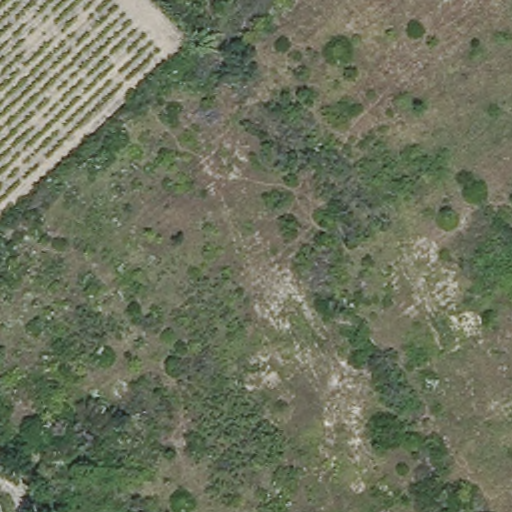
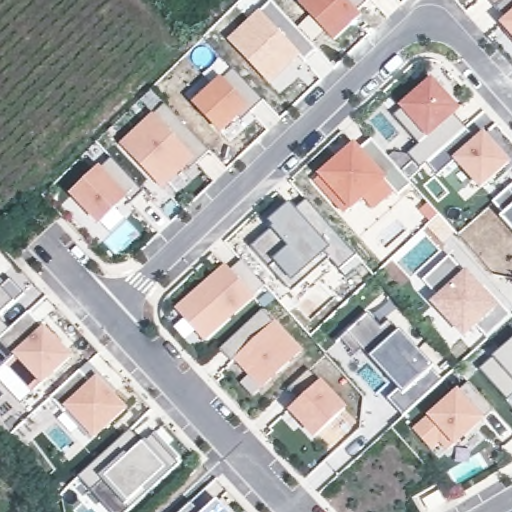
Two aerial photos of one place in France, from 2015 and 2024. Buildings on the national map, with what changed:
new [(270,82),(230,40),(272,0),(318,49),(303,63),(297,57),(287,66),(270,82)]
new [(370,0),(357,13),(360,15),(335,40),(302,5),(308,0),(370,0)]
new [(490,0),(504,0),(496,8),(490,0)]
new [(502,22),(507,18),(496,8),(505,0),(512,0),(512,34),(502,22)]
new [(238,116),(222,132),(195,104),(234,68),(265,100),(251,112),(242,120),(238,116)]
new [(404,109),(400,108),(433,78),(460,111),(454,116),(465,129),(425,164),(428,168),(423,171),(409,155),(422,144),(397,115),(404,109)]
new [(183,162),(160,184),(120,141),(163,101),(207,148),(195,160),(188,167),(183,162)]
new [(465,129),(476,140),(482,135),(507,163),(480,187),(455,159),(435,176),(425,164),(465,129)]
new [(356,145),(360,150),(372,139),(407,179),(412,184),(398,195),(394,190),(373,209),(364,198),(347,213),(317,180),(356,145)]
new [(110,156),(142,190),(130,202),(125,197),(98,222),(71,193),(110,156)]
new [(512,186),(512,230),(500,218),(504,214),(493,202),(512,186)]
new [(268,226),(290,204),(298,211),(307,202),(364,265),(347,279),(330,259),(292,292),(252,247),(268,226)]
new [(482,290),(485,287),(500,302),(512,315),(487,338),(475,324),(464,334),(435,303),(440,298),(423,280),(450,256),(482,290)]
new [(226,266),(230,271),(242,260),(265,285),(205,339),(178,309),(226,266)]
new [(13,279),(27,294),(0,317),(0,283),(3,287),(13,279)]
new [(263,309),(301,351),(262,386),(236,358),(232,361),(221,348),(263,309)]
new [(35,392),(19,375),(28,367),(17,356),(6,367),(0,373),(0,318),(10,330),(29,312),(72,357),(35,392)]
new [(368,313),(382,327),(390,320),(402,334),(405,333),(435,366),(433,367),(443,379),(405,414),(390,397),(405,382),(398,374),(396,376),(379,357),(377,359),(364,344),(356,352),(342,337),(368,313)]
new [(512,340),(512,397),(508,401),(480,369),(512,340)]
new [(64,413),(50,398),(80,371),(89,362),(115,390),(110,394),(125,409),(95,437),(90,441),(64,413)]
new [(310,369),(346,408),(316,436),(292,409),(302,402),(288,388),(310,369)]
new [(470,382),(495,409),(449,449),(440,440),(431,449),(415,430),(470,382)]
new [(78,478),(130,429),(143,444),(152,435),(157,441),(164,448),(178,464),(132,508),(127,512),(110,512),(78,478)]
new [(427,510),(422,501),(438,491),(444,501),(427,510)]
new [(217,501),(228,512),(205,512),(217,501)]
new [(191,502),(200,512),(180,512),(191,502)]

